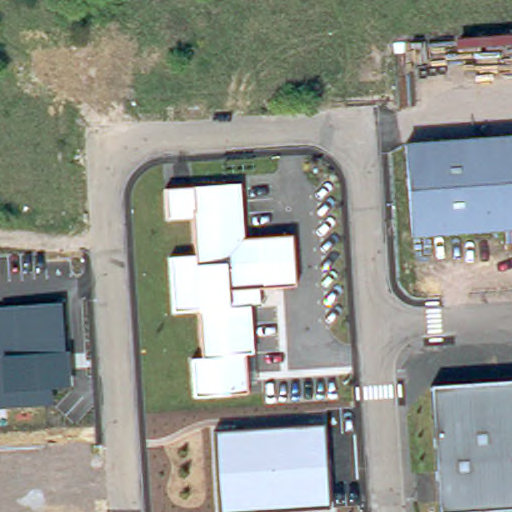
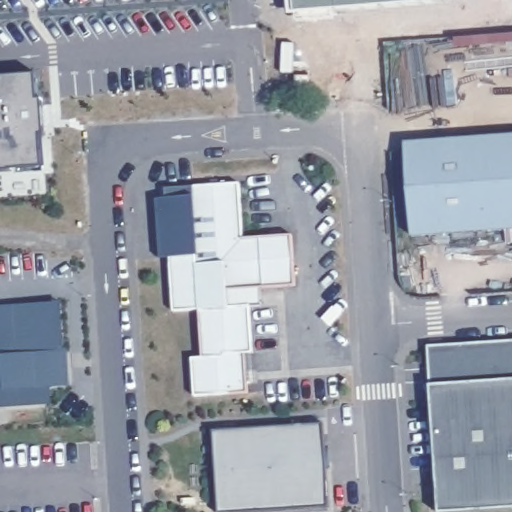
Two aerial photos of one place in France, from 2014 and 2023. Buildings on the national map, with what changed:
new [(0,172),(0,77),(37,75),(43,169),(0,172)]
unchanged [(512,132),(512,239),(507,240),(505,226),(412,232),(405,140),(512,132)]
unchanged [(240,185),(243,239),(292,235),(295,286),(260,288),(261,306),(251,306),(254,355),(245,356),(248,395),(193,397),(191,358),(202,358),(198,310),(172,312),(170,257),(195,255),(193,217),(168,219),(166,190),(240,185)]
new [(168,219),(193,217),(195,255),(170,257),(160,258),(155,199),(167,198),(168,219)]
unchanged [(65,351),(69,351),(71,388),(50,390),(52,406),(0,409),(0,307),(62,303),(65,351)]
new [(428,346),(512,341),(512,375),(431,380),(428,346)]
unchanged [(440,509),(431,380),(512,375),(512,504),(440,509)]
unchanged [(329,509),(285,512),(218,512),(213,431),(323,424),(329,509)]

